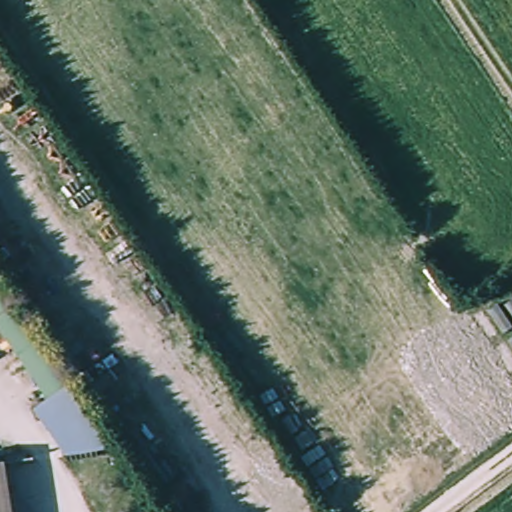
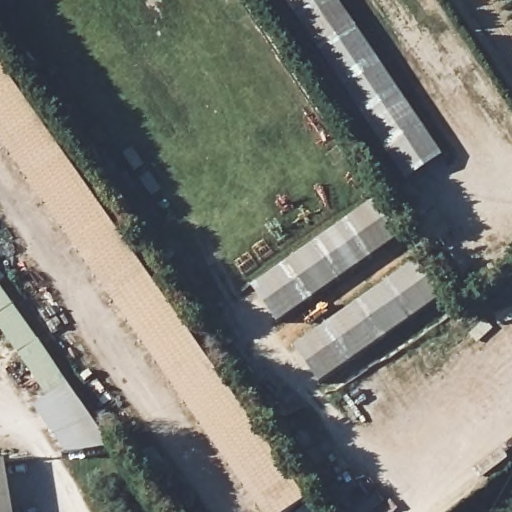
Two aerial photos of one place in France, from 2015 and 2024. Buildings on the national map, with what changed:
new [(405,180),(284,0),(338,0),(442,154),(405,180)]
new [(0,65),(147,276),(110,301),(0,144),(0,65)]
new [(375,200),(400,237),(276,323),(251,287),(375,200)]
new [(414,262),(439,297),(319,383),(294,347),(414,262)]
new [(289,512),(257,512),(110,301),(147,276),(306,501),(289,512)]
new [(110,450),(65,456),(33,409),(48,398),(0,331),(0,286),(66,385),(110,450)]
unchanged [(18,512),(0,512),(0,464),(10,462),(18,512)]

